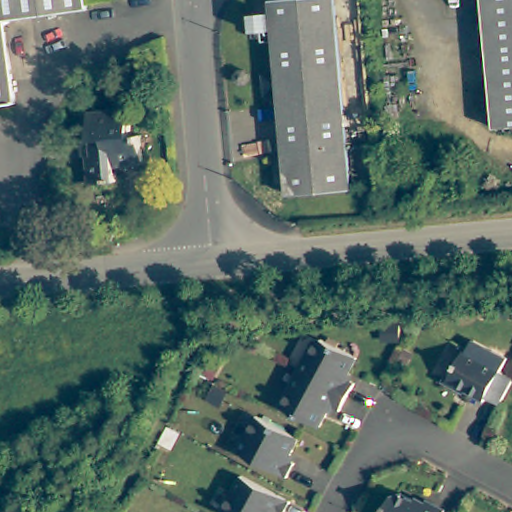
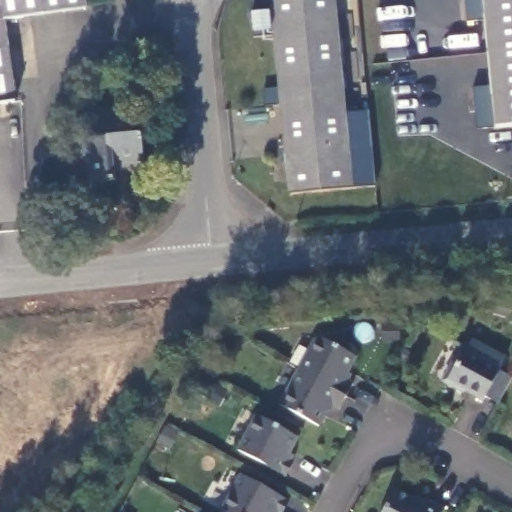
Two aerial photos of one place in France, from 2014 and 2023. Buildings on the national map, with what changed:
unchanged [(0,0),(92,0),(93,8),(12,19),(23,101),(0,104),(0,0)]
unchanged [(285,2),(307,0),(345,0),(363,192),(303,198),(285,2)]
unchanged [(512,0),(512,50),(487,52),(482,0),(512,0)]
unchanged [(284,32),(265,34),(264,16),(282,15),(284,32)]
unchanged [(512,50),(512,125),(494,127),(487,52),(512,50)]
unchanged [(149,138),(159,137),(161,166),(132,169),(134,184),(108,187),(105,159),(99,159),(98,144),(109,143),(106,115),(146,111),(149,138)]
unchanged [(298,370),(315,339),(322,338),(357,357),(345,378),(354,383),(346,396),(298,370)]
unchanged [(505,408),(492,401),(490,404),(472,394),(471,396),(449,385),(459,367),(463,369),(472,352),(494,364),(493,367),(512,379),(512,395),(505,408)]
unchanged [(339,410),(330,405),(319,426),(279,405),(298,370),(346,396),(339,410)]
unchanged [(239,450),(258,415),(300,438),(289,459),(295,462),(287,476),(239,450)]
unchanged [(274,512),(267,512),(266,511),(266,512),(217,512),(213,510),(232,475),(280,501),(274,512)]
unchanged [(438,512),(379,512),(389,494),(396,492),(419,505),(422,499),(440,509),(438,512)]

